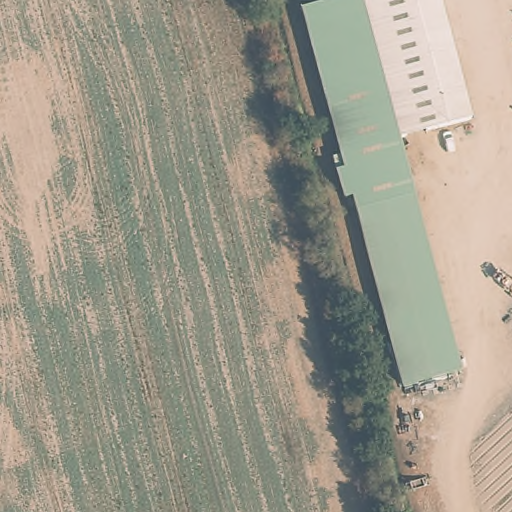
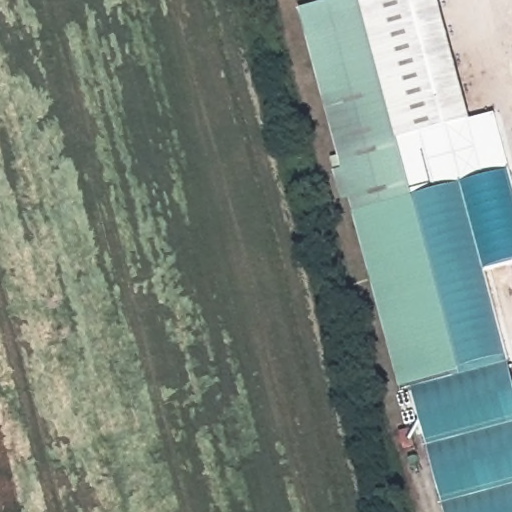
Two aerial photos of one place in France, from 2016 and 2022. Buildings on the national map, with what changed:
unchanged [(377,64),(342,73),(328,7),(355,0),(445,0),(477,123),(396,144),(377,64)]
unchanged [(330,14),(335,37),(342,73),(377,64),(396,144),(461,382),(400,398),(348,199),(340,201),(328,160),(337,158),(301,15),(328,7),(330,14)]
new [(413,394),(461,382),(410,197),(462,185),(471,221),(498,213),(511,263),(485,271),(512,374),(512,512),(445,512),(413,394)]

